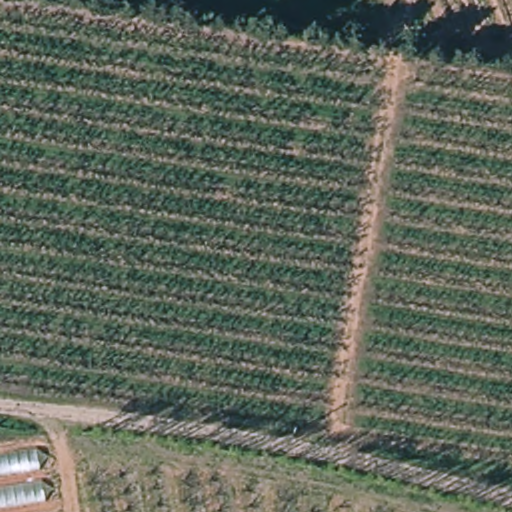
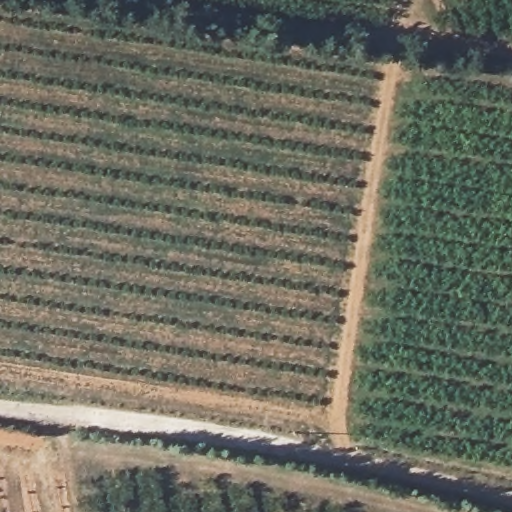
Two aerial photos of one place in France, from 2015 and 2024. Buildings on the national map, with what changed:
demolished [(28,450),(42,510),(28,512),(0,512),(0,455),(28,450)]

